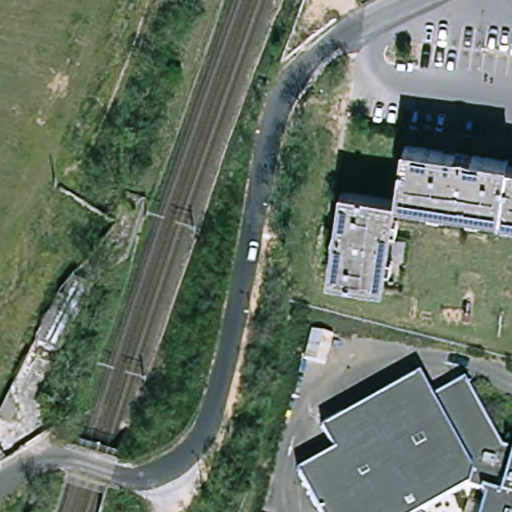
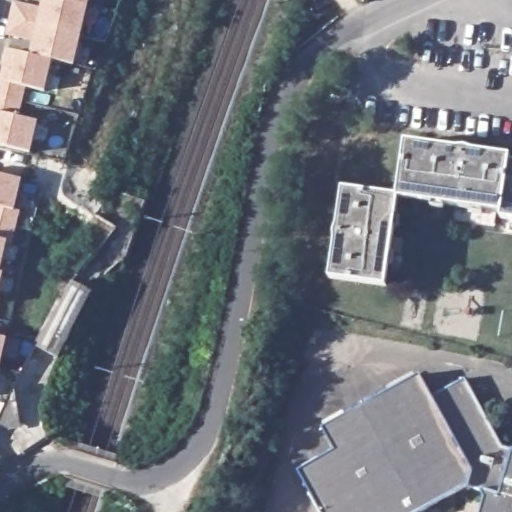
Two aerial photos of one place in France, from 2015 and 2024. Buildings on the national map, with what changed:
new [(90,7),(74,67),(54,61),(47,93),(29,88),(21,118),(40,123),(32,153),(0,148),(0,81),(2,81),(9,51),(31,55),(33,43),(6,36),(14,2),(42,9),(44,0),(91,0),(90,7)]
unchanged [(412,141),(512,156),(512,220),(507,219),(507,213),(403,197),(412,141)]
new [(13,244),(8,244),(1,273),(5,274),(0,294),(0,175),(24,180),(17,211),(22,212),(13,244)]
unchanged [(389,286),(335,278),(348,189),(403,197),(389,286)]
unchanged [(41,346),(74,287),(91,295),(62,356),(41,346)]
new [(0,369),(0,338),(8,340),(0,369)]
unchanged [(465,377),(505,444),(512,447),(512,512),(324,512),(300,471),(336,450),(324,427),(420,373),(434,396),(465,377)]
unchanged [(24,431),(0,428),(0,425),(19,386),(24,431)]

